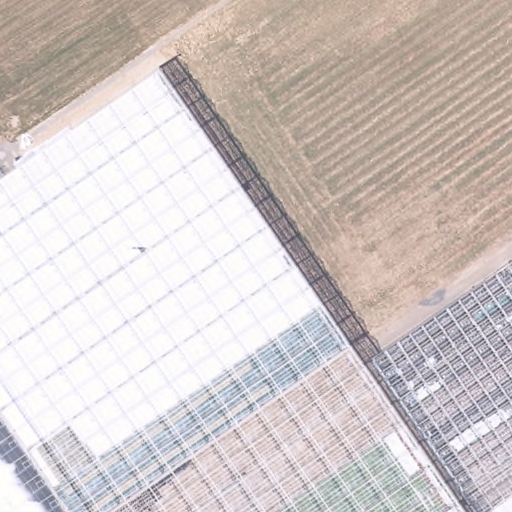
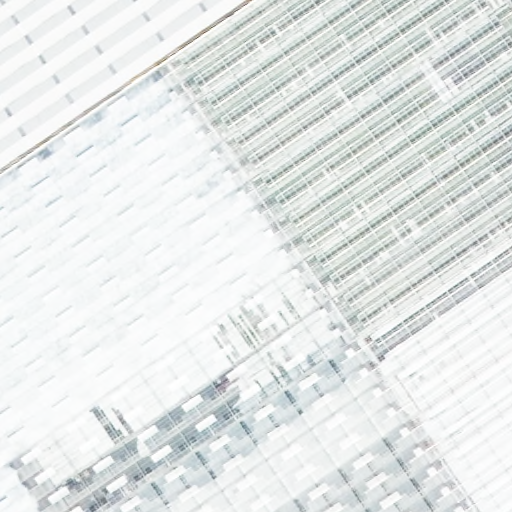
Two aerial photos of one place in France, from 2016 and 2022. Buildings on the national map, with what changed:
new [(161,65),(0,176),(0,0),(255,0),(161,65)]
new [(377,368),(479,512),(469,512),(161,65),(255,0),(512,0),(512,271),(377,368)]
unchanged [(0,512),(0,176),(161,65),(469,512),(0,512)]
unchanged [(512,271),(512,512),(479,512),(377,368),(512,271)]

